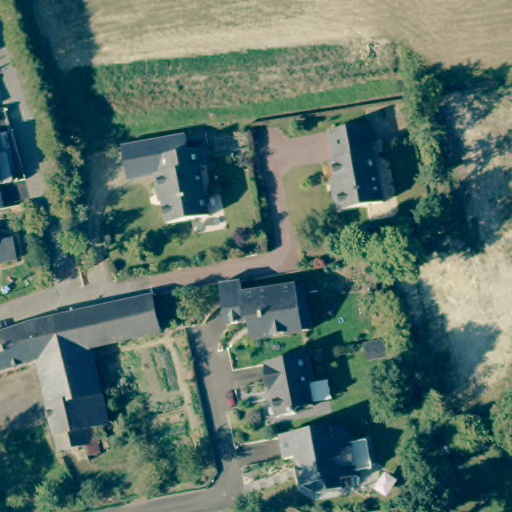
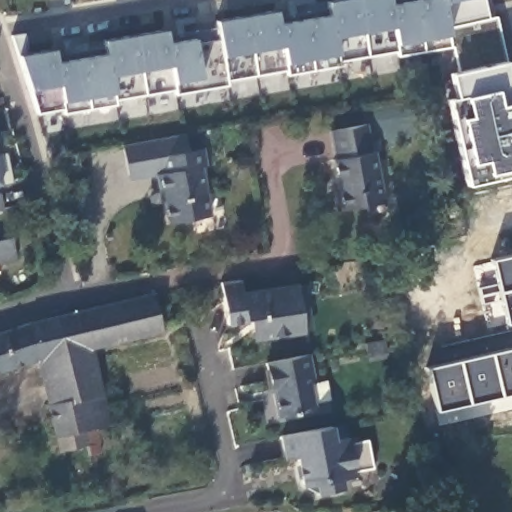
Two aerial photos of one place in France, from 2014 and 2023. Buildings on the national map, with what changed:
new [(447,101),(454,99),(448,75),(459,72),(452,48),(399,56),(398,52),(339,62),(340,67),(288,76),(287,71),(228,81),(229,88),(177,97),(174,90),(116,99),(118,106),(63,115),(61,110),(35,115),(29,90),(18,56),(53,48),(56,63),(106,54),(104,40),(164,30),(166,36),(217,29),(214,20),(274,10),(278,23),(330,16),(326,2),(336,0),(388,0),(389,5),(423,0),(485,0),(489,17),(497,15),(506,61),(512,88),(512,176),(467,185),(447,101)]
demolished [(400,81),(382,0),(512,0),(512,50),(400,81)]
unchanged [(372,152),(374,152),(384,203),(338,212),(334,191),(339,190),(334,160),(336,160),(331,130),(367,124),(372,152)]
unchanged [(153,155),(156,171),(154,172),(128,176),(122,145),(184,133),(188,149),(153,155)]
unchanged [(203,163),(197,164),(205,214),(164,221),(159,190),(156,190),(154,172),(156,171),(153,155),(200,146),(203,163)]
unchanged [(11,180),(0,184),(0,155),(6,153),(11,180)]
unchanged [(15,264),(0,267),(0,245),(10,242),(15,264)]
unchanged [(308,287),(315,331),(294,335),(294,332),(265,337),(263,326),(269,324),(267,317),(252,319),(253,324),(234,328),(225,284),(244,282),(248,298),(308,287)]
unchanged [(55,435),(38,359),(0,370),(0,332),(23,324),(89,310),(152,296),(159,331),(89,348),(106,424),(80,430),(87,460),(63,466),(55,435)]
unchanged [(308,366),(312,366),(314,380),(310,386),(313,407),(299,410),(295,416),(277,419),(267,364),(306,357),(308,366)]
unchanged [(299,433),(329,428),(332,442),(349,439),(349,444),(366,441),(372,469),(354,472),(356,477),(339,480),(341,490),(315,495),(313,482),(300,484),(295,455),(283,457),(279,437),(299,433)]

